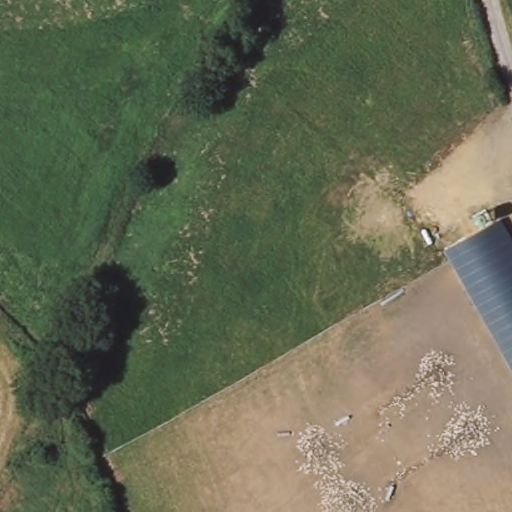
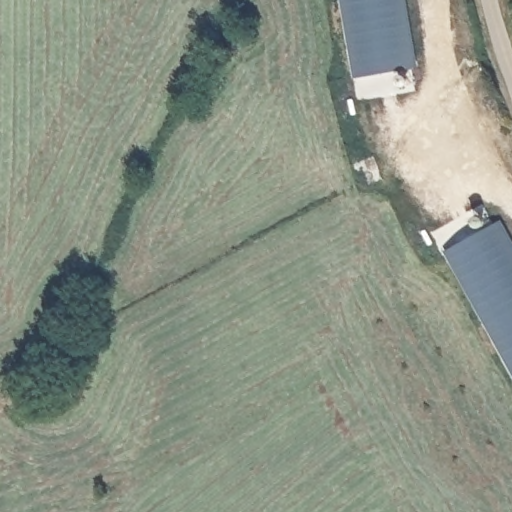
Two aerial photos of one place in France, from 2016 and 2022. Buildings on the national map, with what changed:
new [(419,67),(356,77),(342,0),(408,0),(419,67)]
unchanged [(503,217),(512,235),(512,367),(448,250),(503,217)]

